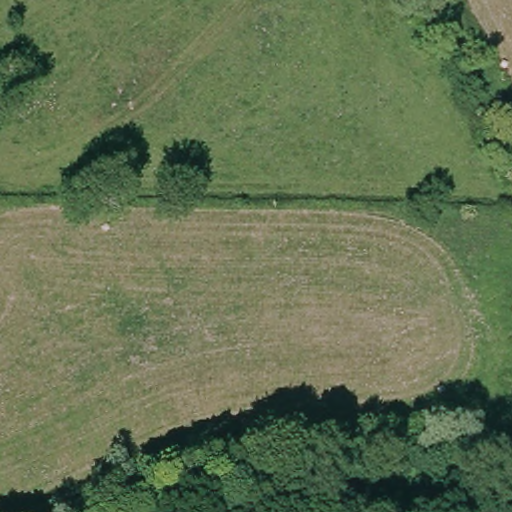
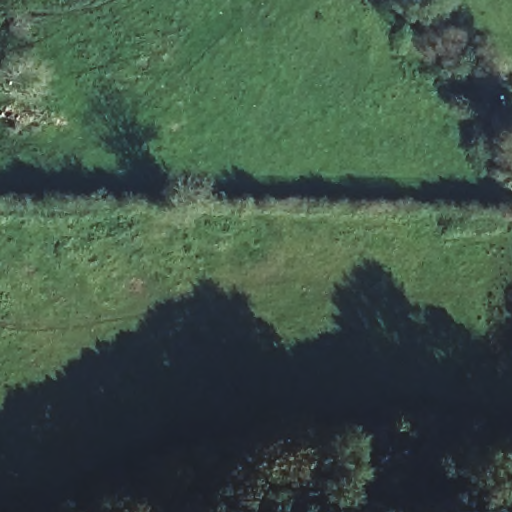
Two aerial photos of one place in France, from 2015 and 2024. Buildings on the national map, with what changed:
[]

